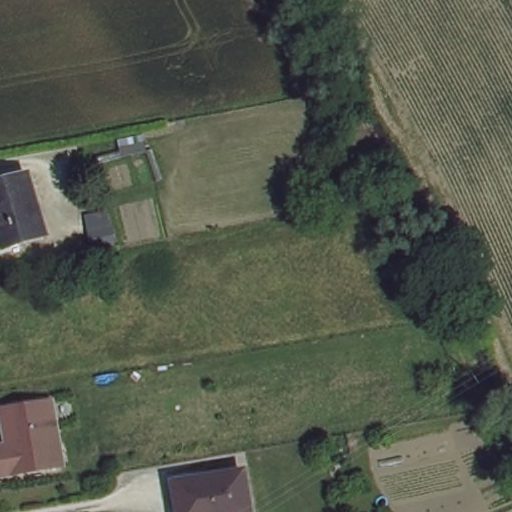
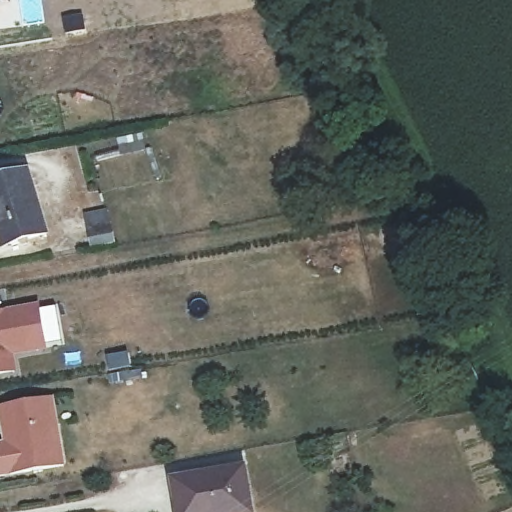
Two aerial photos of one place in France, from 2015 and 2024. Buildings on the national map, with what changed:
unchanged [(2,242),(0,234),(0,173),(25,166),(45,230),(2,242)]
new [(64,344),(47,347),(48,352),(16,358),(17,373),(0,376),(0,309),(39,302),(40,308),(57,306),(64,344)]
new [(128,351),(132,368),(120,371),(122,383),(109,386),(104,355),(128,351)]
unchanged [(0,472),(0,445),(10,443),(3,405),(56,396),(67,463),(0,472)]
unchanged [(249,511),(241,512),(180,512),(174,476),(242,467),(249,511)]

